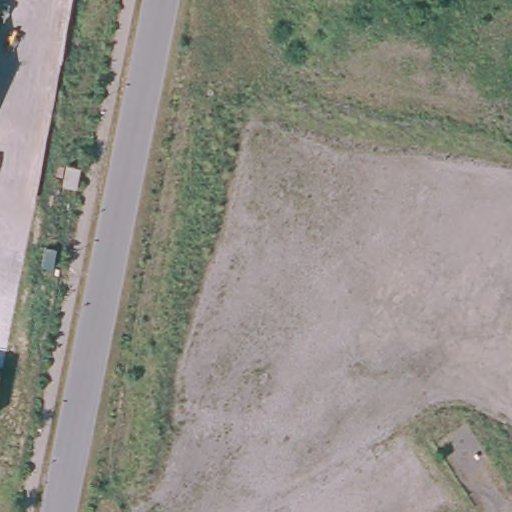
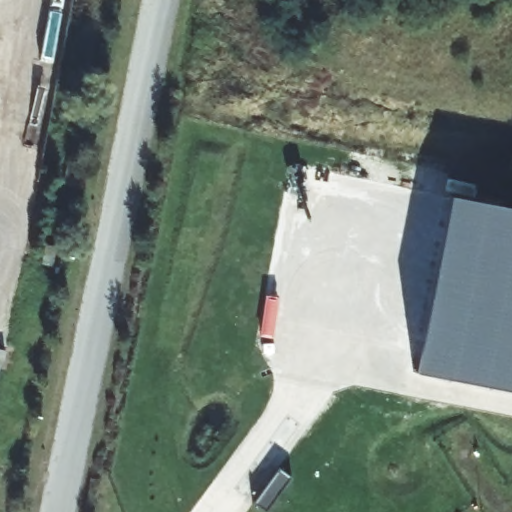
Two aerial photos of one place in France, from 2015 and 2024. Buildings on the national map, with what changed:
new [(512,211),(512,393),(408,372),(443,197),(512,211)]
new [(274,466),(287,476),(261,511),(248,501),(274,466)]

